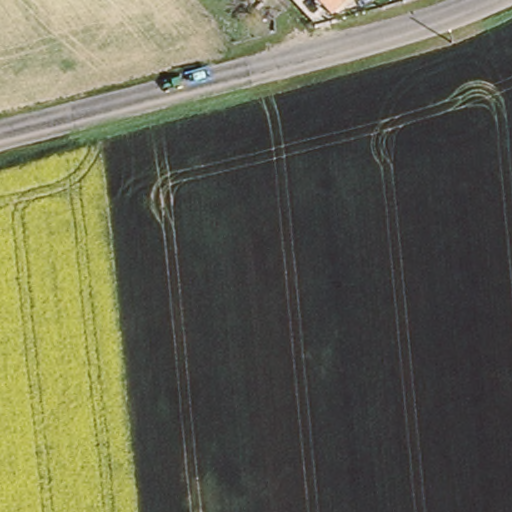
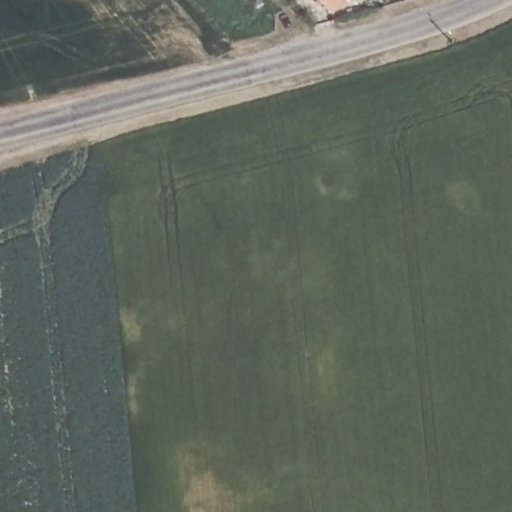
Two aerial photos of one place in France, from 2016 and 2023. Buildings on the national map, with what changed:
unchanged [(344,0),(335,8),(328,0),(344,0)]

